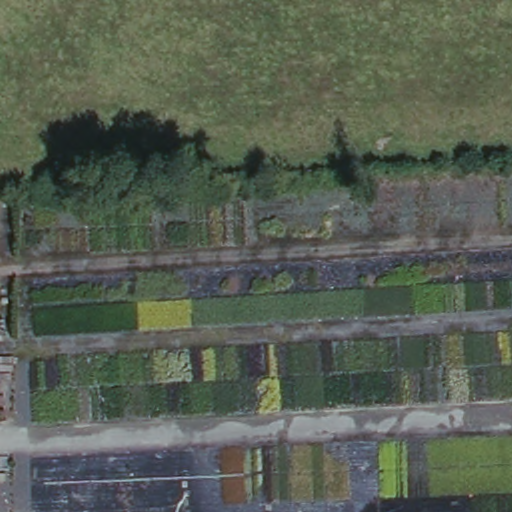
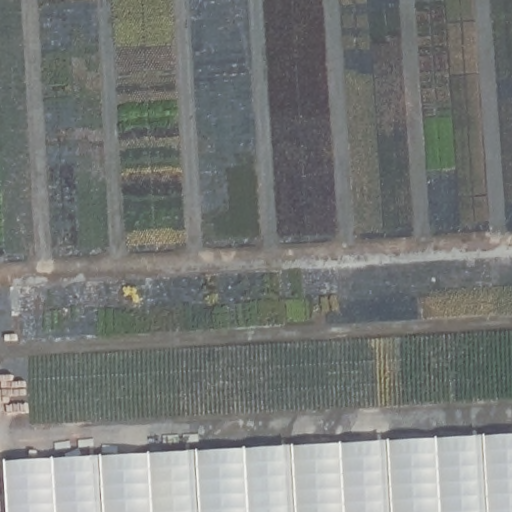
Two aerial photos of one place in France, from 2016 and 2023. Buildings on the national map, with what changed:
new [(512,432),(512,512),(8,512),(5,460),(512,432)]

